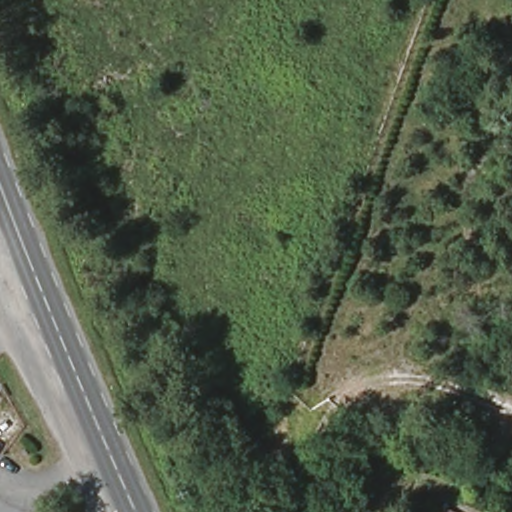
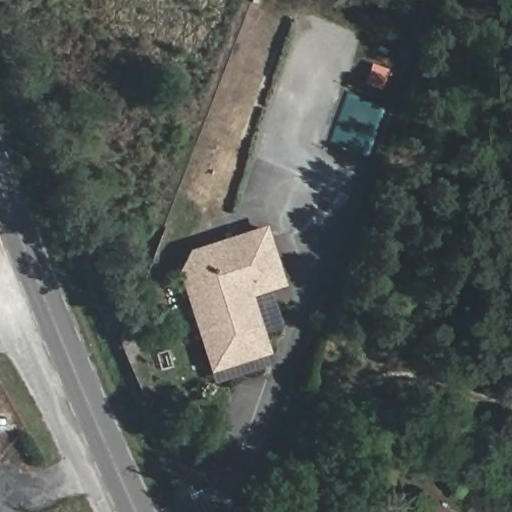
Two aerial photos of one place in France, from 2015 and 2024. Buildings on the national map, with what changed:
new [(283,286),(249,295),(268,354),(209,372),(176,271),(188,250),(264,226),(283,286)]
unchanged [(444,511),(446,512),(444,512),(444,511)]

